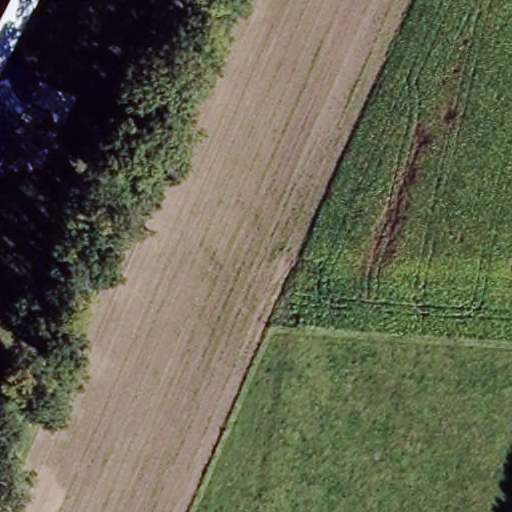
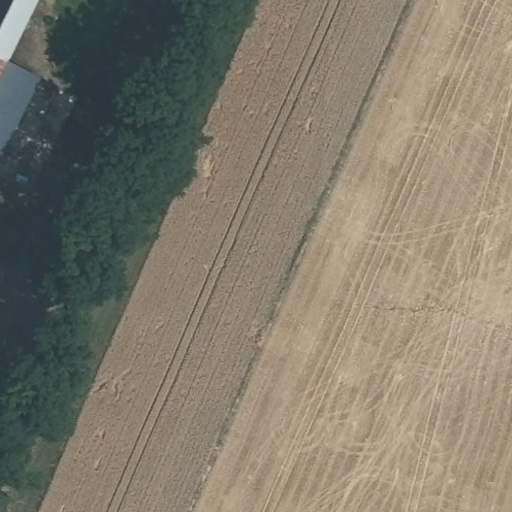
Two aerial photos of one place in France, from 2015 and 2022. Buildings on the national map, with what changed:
unchanged [(0,60),(0,0),(40,0),(8,64),(0,60)]
unchanged [(13,67),(0,91),(0,60),(8,64),(13,67)]
unchanged [(0,152),(0,91),(13,67),(39,81),(0,152)]

